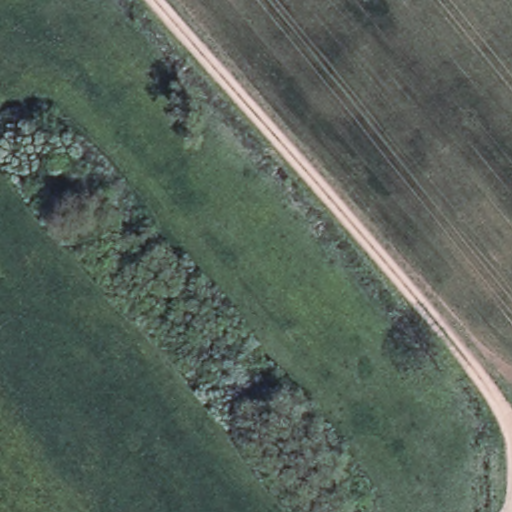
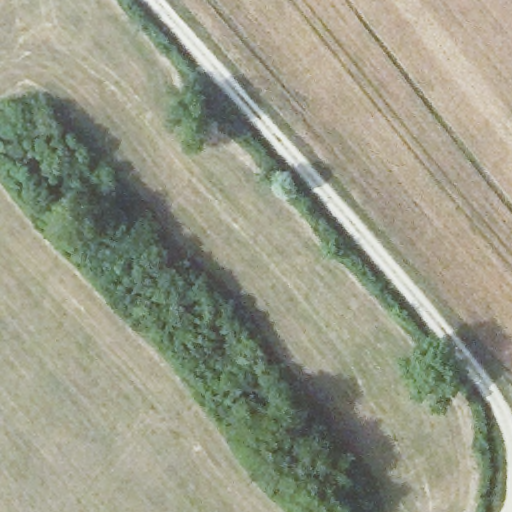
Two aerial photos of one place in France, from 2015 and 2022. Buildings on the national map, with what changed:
unchanged [(138,219),(120,231),(106,214),(124,202),(138,219)]

